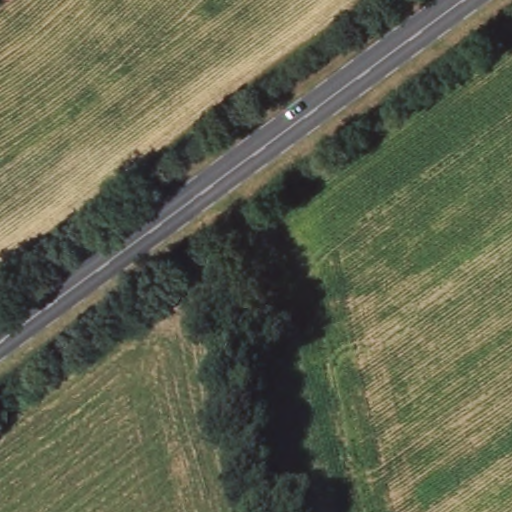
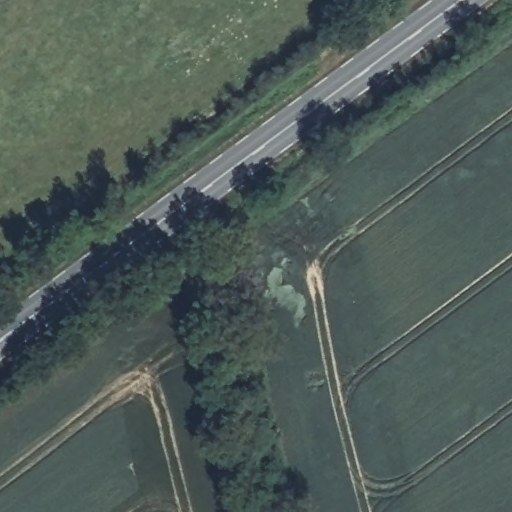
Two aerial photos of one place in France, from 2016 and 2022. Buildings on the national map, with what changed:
[]

